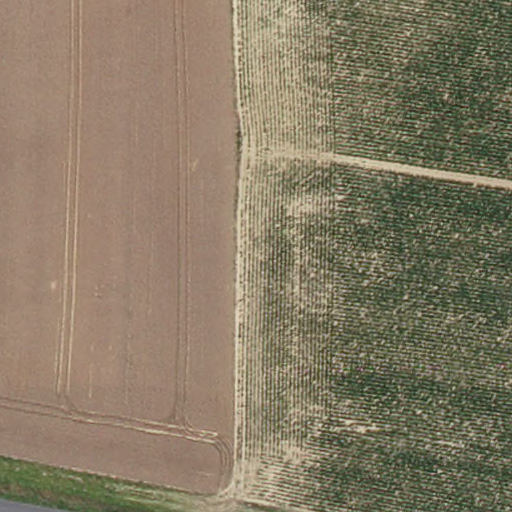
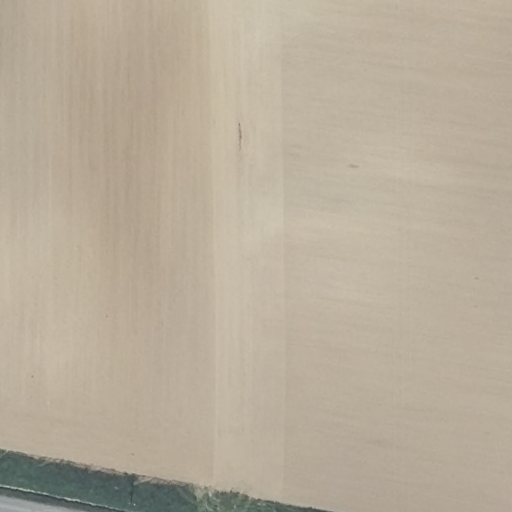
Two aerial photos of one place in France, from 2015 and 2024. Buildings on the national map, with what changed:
[]

